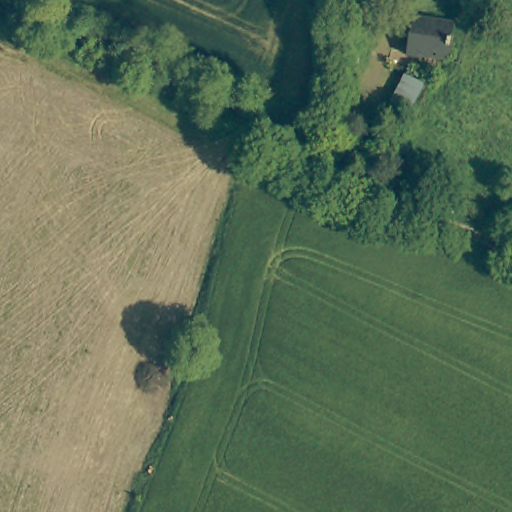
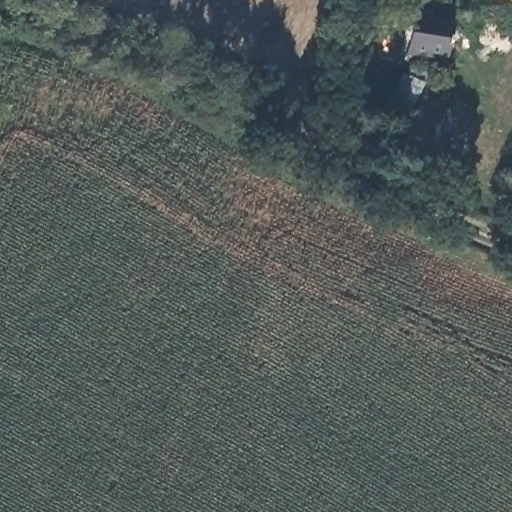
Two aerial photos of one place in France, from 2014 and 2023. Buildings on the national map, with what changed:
unchanged [(412,56),(417,17),(454,20),(450,60),(438,58),(412,56)]
unchanged [(412,69),(431,78),(417,111),(398,103),(412,69)]

